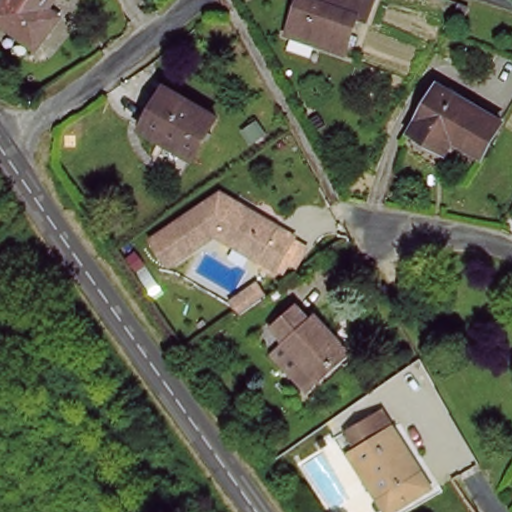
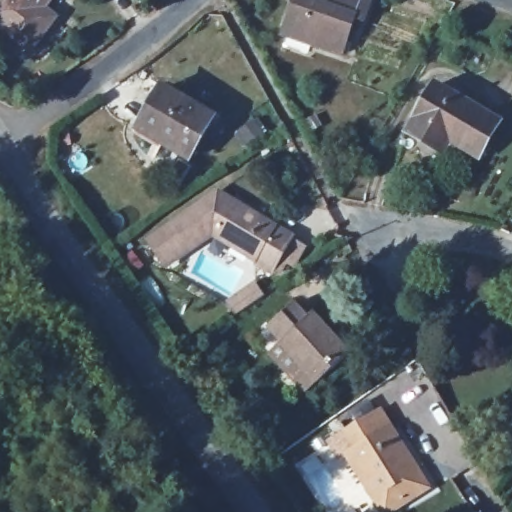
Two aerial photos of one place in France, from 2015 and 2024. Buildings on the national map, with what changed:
unchanged [(1,0),(50,0),(46,5),(61,19),(31,52),(0,28),(0,1),(1,0)]
unchanged [(377,26),(363,20),(351,60),(289,39),(300,0),(320,7),(322,0),(375,0),(384,3),(377,26)]
unchanged [(441,83),(505,123),(486,153),(446,128),(434,146),(410,132),(441,83)]
unchanged [(164,91),(214,121),(190,162),(139,132),(164,91)]
unchanged [(178,267),(161,242),(231,195),(289,233),(269,264),(226,234),(178,267)]
unchanged [(254,289),(263,303),(240,319),(230,306),(254,289)]
unchanged [(290,306),(306,324),(312,319),(350,360),(321,387),(303,368),(298,370),(279,348),(284,344),(269,328),(290,306)]
unchanged [(372,411),(386,433),(392,429),(421,474),(373,503),(346,458),(354,452),(341,433),(372,411)]

